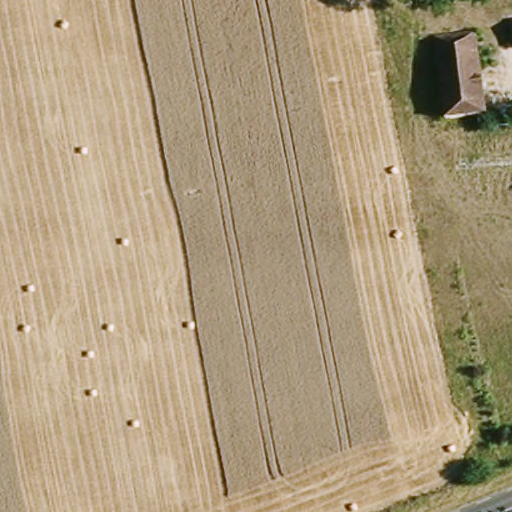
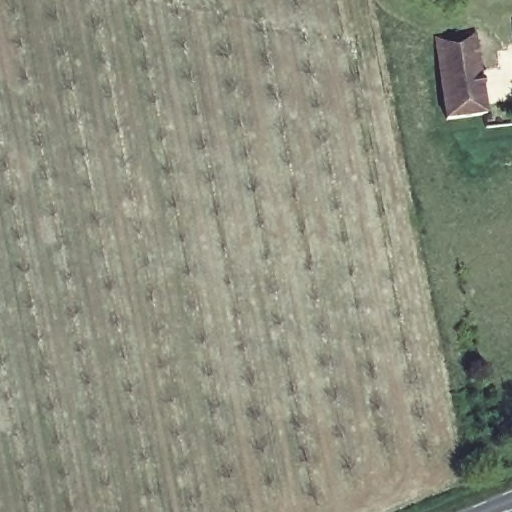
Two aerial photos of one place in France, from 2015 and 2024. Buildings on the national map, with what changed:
unchanged [(443,118),(430,35),(470,29),(482,112),(443,118)]

